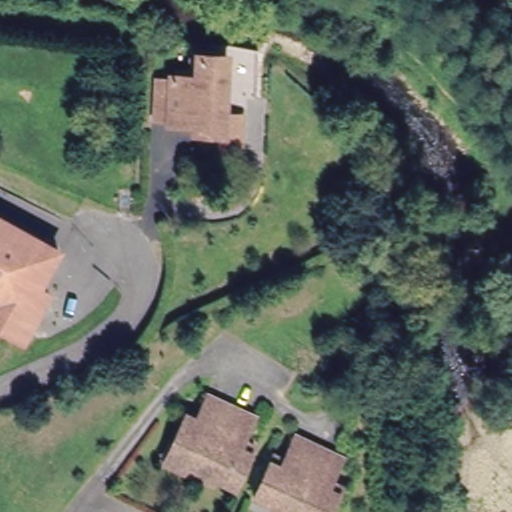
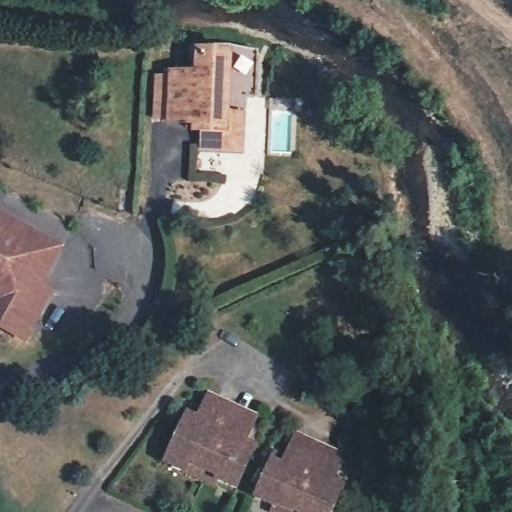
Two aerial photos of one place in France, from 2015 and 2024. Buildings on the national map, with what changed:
unchanged [(180,72),(201,74),(202,53),(229,56),(227,109),(227,129),(206,128),(199,127),(199,121),(182,120),(172,119),(164,119),(155,117),(159,72),(162,71),(174,72),(180,72)]
unchanged [(245,152),(205,150),(206,128),(227,129),(227,109),(247,111),(245,152)]
unchanged [(52,248),(32,286),(44,292),(19,338),(0,328),(0,218),(52,248)]
unchanged [(232,485),(211,475),(208,481),(178,468),(181,462),(164,453),(182,413),(191,417),(202,392),(211,397),(241,410),(251,415),(240,438),(250,443),(232,485)]
unchanged [(273,512),(275,507),(257,498),(275,457),(283,462),(295,437),(306,442),(336,456),(347,461),(336,485),(343,488),(332,512),(273,512)]

